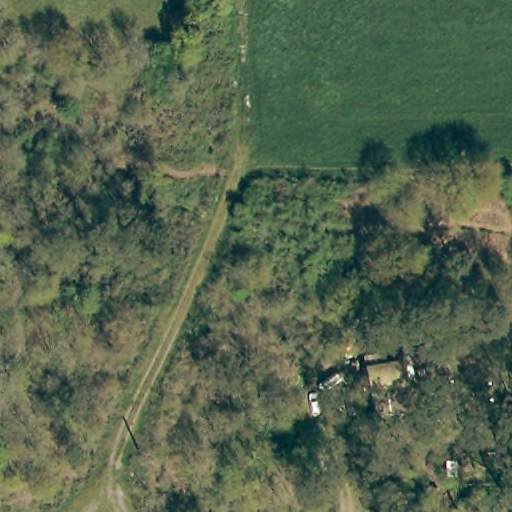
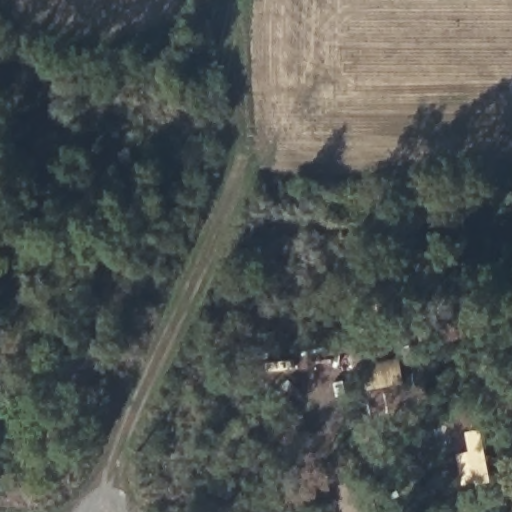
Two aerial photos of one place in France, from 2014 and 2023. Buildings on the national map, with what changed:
unchanged [(381,380),(386,409),(368,413),(361,382),(381,380)]
unchanged [(430,491),(444,498),(438,508),(424,500),(430,491)]

